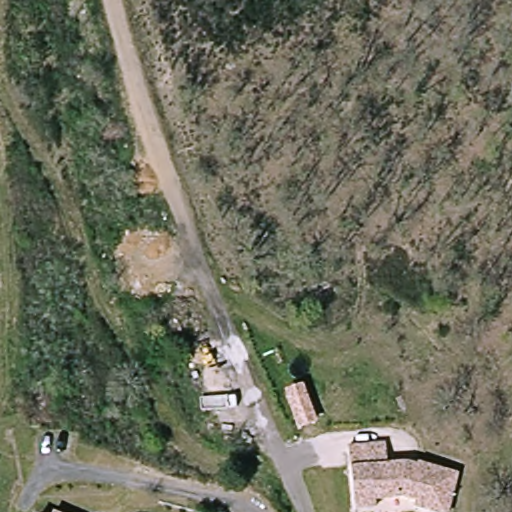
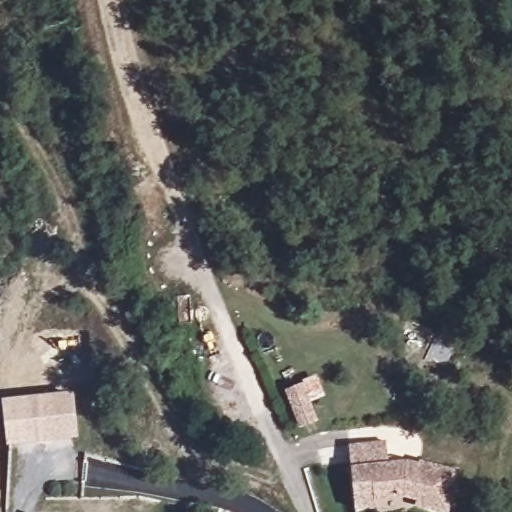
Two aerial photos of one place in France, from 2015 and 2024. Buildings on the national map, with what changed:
new [(316,375),(326,397),(311,403),(319,421),(300,428),(285,391),(316,375)]
new [(73,392),(78,438),(8,446),(4,400),(73,392)]
unchanged [(352,487),(346,445),(385,440),(389,462),(408,460),(407,466),(417,468),(420,458),(461,470),(452,512),(442,512),(417,506),(418,502),(404,497),(376,501),(377,509),(356,512),(352,487)]
demolished [(42,512),(45,504),(66,512),(42,512)]

